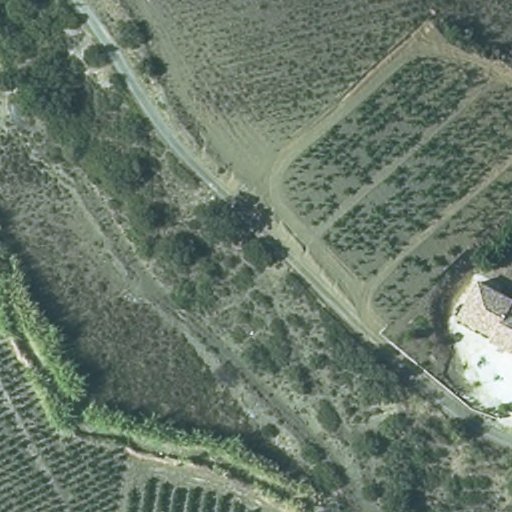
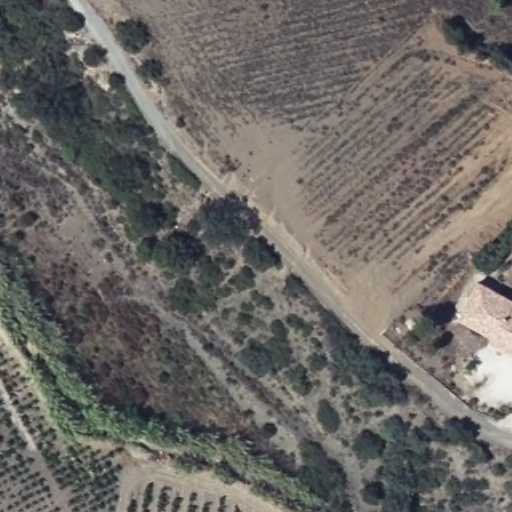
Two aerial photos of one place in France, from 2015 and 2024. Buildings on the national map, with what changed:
unchanged [(488,333),(489,329),(456,310),(475,274),(511,293),(509,298),(512,300),(512,340),(508,345),(488,333)]

